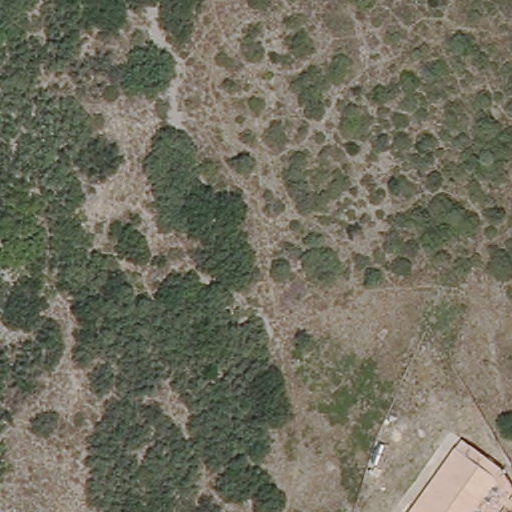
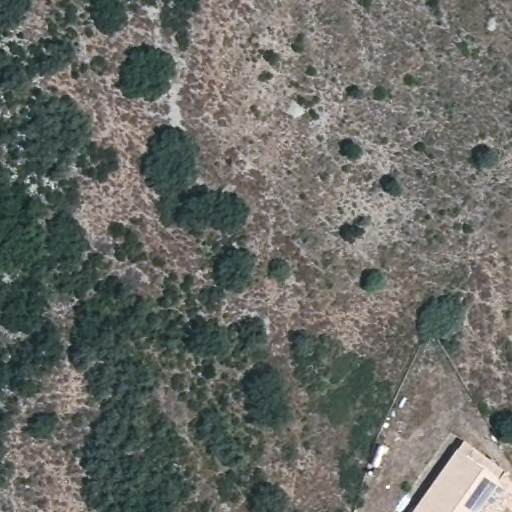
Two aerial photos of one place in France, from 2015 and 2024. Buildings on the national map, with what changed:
unchanged [(510,468),(478,512),(416,512),(468,439),(510,468)]
unchanged [(478,512),(510,468),(512,473),(512,499),(503,512),(478,512)]

